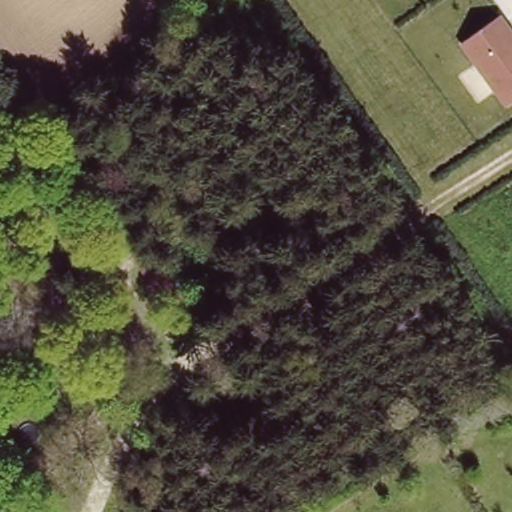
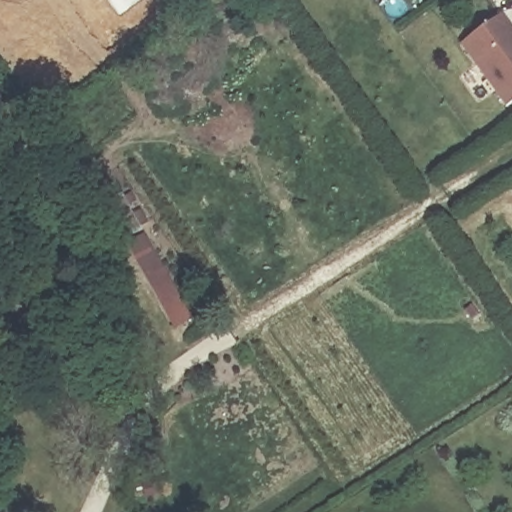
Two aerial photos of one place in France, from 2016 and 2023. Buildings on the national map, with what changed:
unchanged [(512,32),(512,99),(506,104),(463,41),(499,14),(512,32)]

